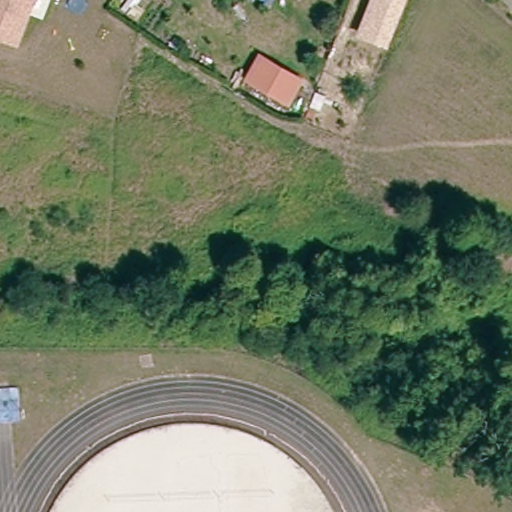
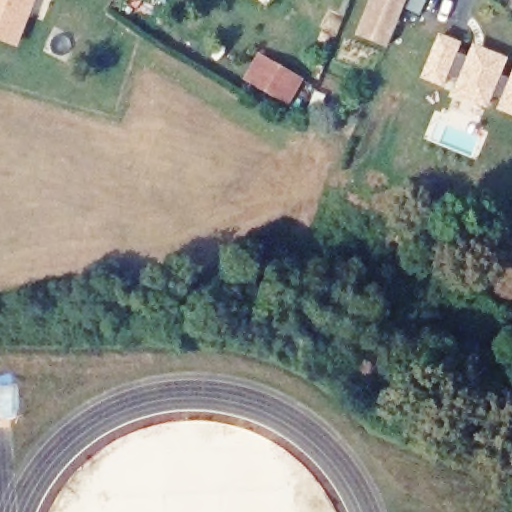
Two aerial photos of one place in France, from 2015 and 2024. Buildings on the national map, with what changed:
unchanged [(34,0),(18,46),(0,40),(0,0),(34,0)]
new [(370,0),(406,0),(387,48),(355,35),(370,0)]
new [(502,98),(494,95),(487,109),(452,95),(459,78),(449,74),(443,88),(420,80),(438,34),(461,43),(458,53),(469,56),(472,44),(508,58),(503,74),(511,76),(512,73),(512,116),(497,110),(502,98)]
unchanged [(291,89),(301,95),(294,106),(264,90),(277,68),(297,79),(291,89)]

